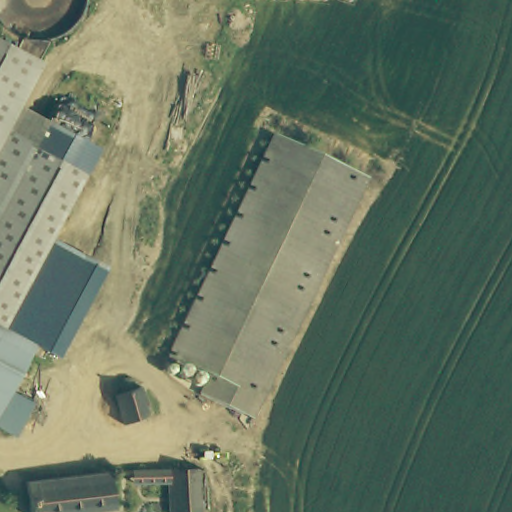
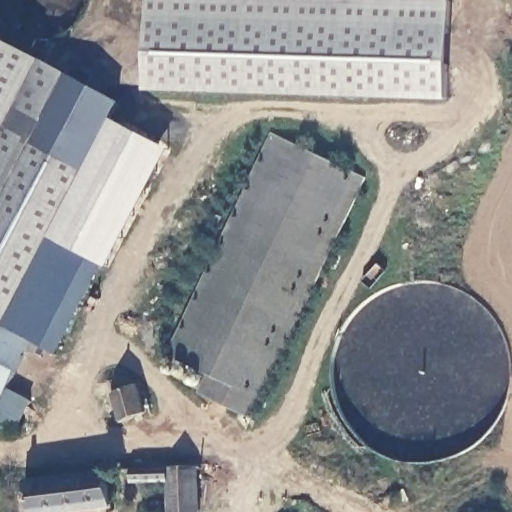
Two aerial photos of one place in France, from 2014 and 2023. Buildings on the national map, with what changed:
new [(353,0),(354,0),(455,0),(451,101),(145,90),(148,0),(338,0),(353,0)]
unchanged [(51,236),(105,265),(57,356),(33,342),(11,390),(33,402),(15,438),(0,429),(0,38),(121,103),(51,236)]
unchanged [(166,371),(279,132),(374,178),(259,418),(166,371)]
unchanged [(121,388),(121,385),(122,381),(124,379),(127,378),(130,379),(132,382),(134,388),(141,387),(143,422),(119,424),(117,388),(121,388)]
unchanged [(210,511),(187,512),(175,512),(173,467),(208,465),(210,511)]
unchanged [(110,472),(114,510),(99,512),(38,512),(35,479),(74,476),(110,472)]

